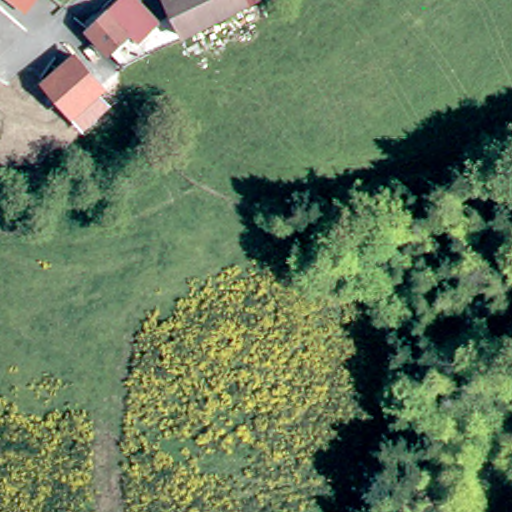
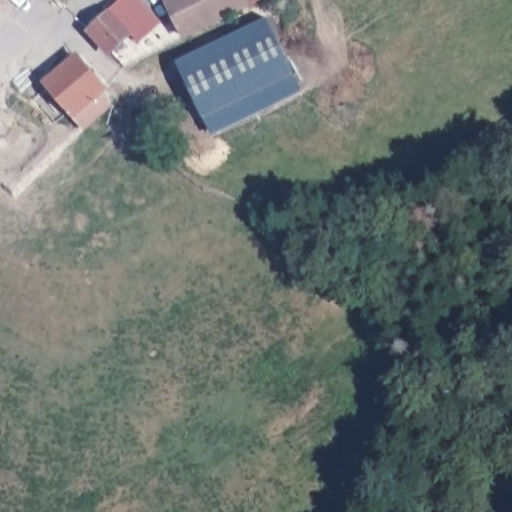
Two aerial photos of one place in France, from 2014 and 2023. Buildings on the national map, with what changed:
unchanged [(25,12),(11,0),(35,0),(25,12)]
unchanged [(170,1),(172,0),(244,0),(247,9),(188,37),(170,1)]
unchanged [(247,9),(244,0),(262,0),(247,9)]
unchanged [(95,36),(119,12),(133,2),(162,32),(161,34),(148,45),(139,36),(118,58),(95,36)]
new [(267,17),(295,74),(204,118),(177,62),(267,17)]
unchanged [(88,110),(76,117),(52,84),(64,75),(87,61),(109,94),(100,99),(110,111),(96,121),(88,110)]

